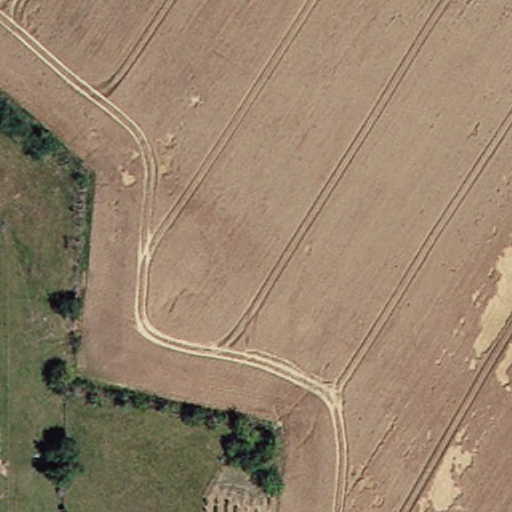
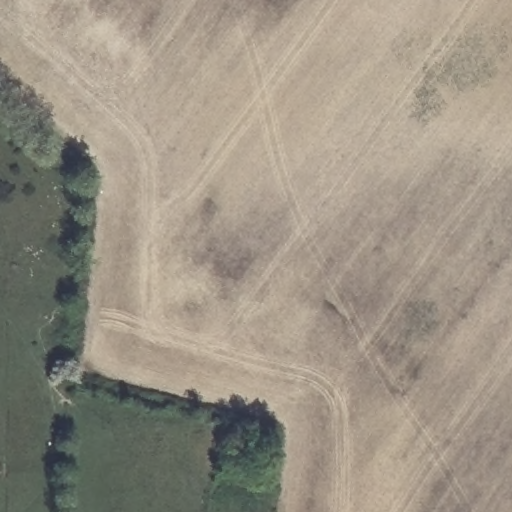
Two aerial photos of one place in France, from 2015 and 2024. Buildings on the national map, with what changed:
[]

